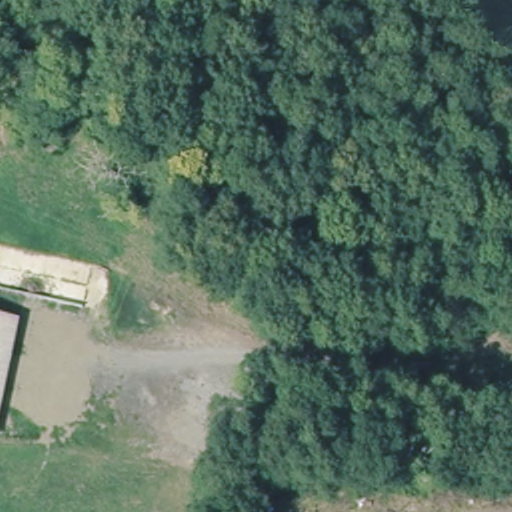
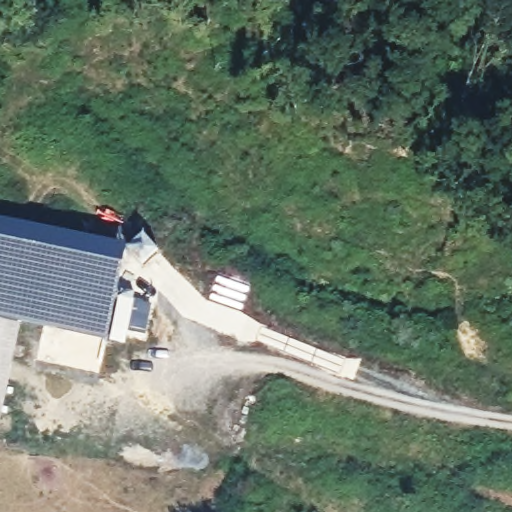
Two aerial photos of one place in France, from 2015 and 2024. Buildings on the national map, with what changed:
new [(107,343),(0,320),(0,221),(127,248),(107,343)]
new [(110,342),(121,291),(136,294),(135,300),(153,305),(146,336),(128,332),(125,345),(110,342)]
unchanged [(0,321),(22,326),(0,424),(0,321)]

